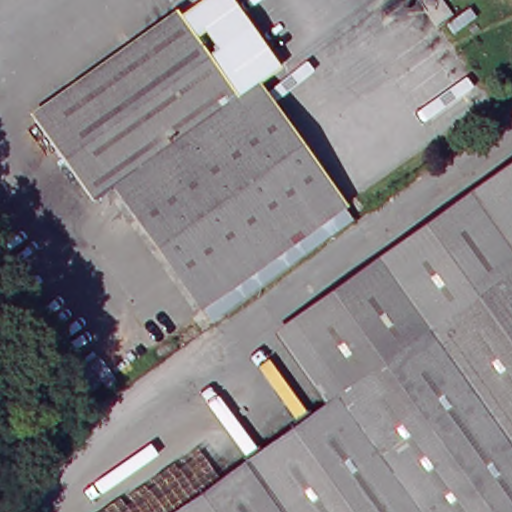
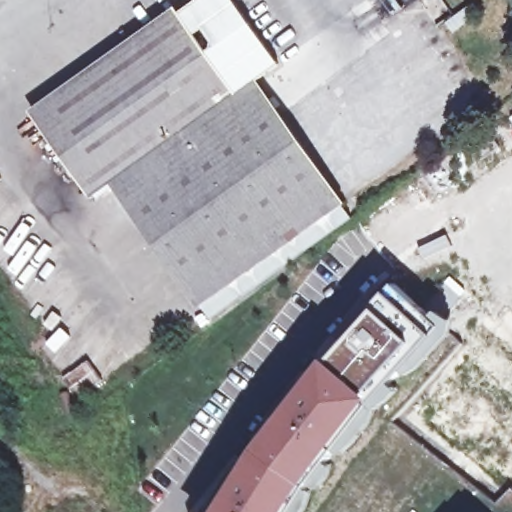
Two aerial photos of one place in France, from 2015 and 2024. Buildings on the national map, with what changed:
unchanged [(198,306),(110,183),(98,192),(90,197),(32,118),(178,15),(199,0),(233,0),(278,65),(255,80),(342,204),(198,306)]
demolished [(291,323),(365,286),(358,274),(386,255),(458,219),(452,206),(473,191),(512,172),(512,512),(158,512),(336,385),(291,323)]
unchanged [(186,315),(98,192),(110,183),(198,306),(186,315)]
new [(327,359),(376,307),(386,293),(432,335),(375,400),(308,484),(291,512),(219,512),(257,448),(327,359)]

